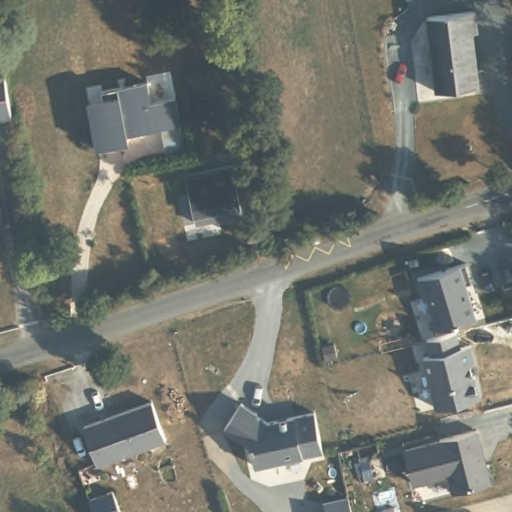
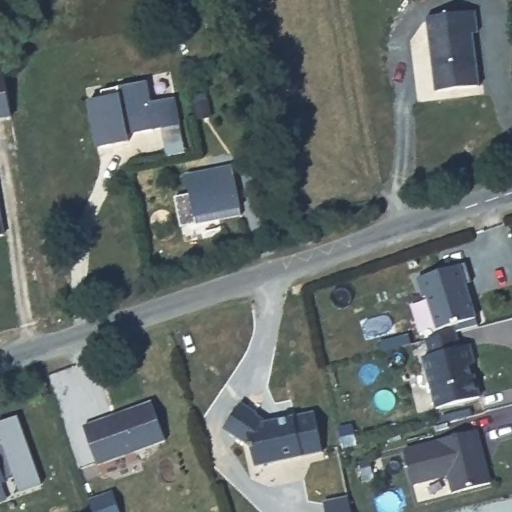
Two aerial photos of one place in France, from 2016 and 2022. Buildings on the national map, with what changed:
unchanged [(423,12),(472,7),(475,28),(470,29),(476,82),(432,87),(423,12)]
new [(12,117),(0,119),(0,72),(4,72),(12,117)]
unchanged [(125,134),(126,141),(96,147),(87,101),(102,98),(100,90),(146,82),(150,102),(171,98),(175,125),(125,134)]
unchanged [(186,174),(232,165),(241,210),(195,218),(186,174)]
unchanged [(0,231),(0,215),(2,231),(0,231)]
unchanged [(428,298),(425,294),(421,278),(465,265),(471,285),(467,285),(476,318),(439,332),(428,298)]
unchanged [(428,342),(458,335),(462,347),(470,345),(480,401),(437,408),(428,342)]
unchanged [(152,398),(165,437),(101,461),(86,422),(152,398)]
unchanged [(324,449),(258,463),(254,442),(227,425),(244,401),(260,411),(257,413),(269,419),(315,410),(324,449)]
new [(0,434),(0,421),(19,415),(42,484),(20,492),(14,474),(5,478),(6,480),(0,482),(0,442),(2,441),(0,434)]
unchanged [(476,432),(490,486),(452,495),(448,478),(413,484),(405,449),(476,432)]
unchanged [(115,489),(123,512),(96,512),(91,497),(115,489)]
unchanged [(326,502),(347,497),(351,512),(328,512),(326,502)]

